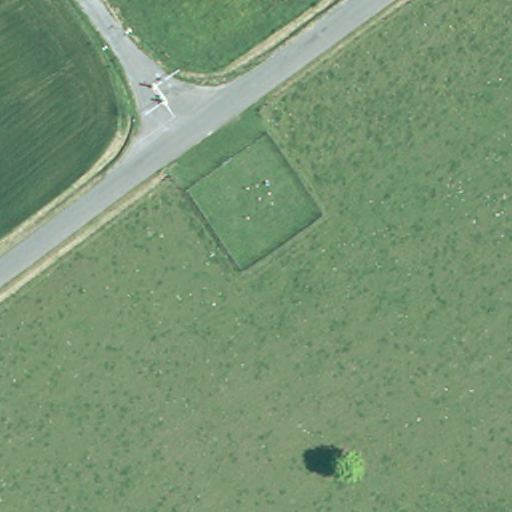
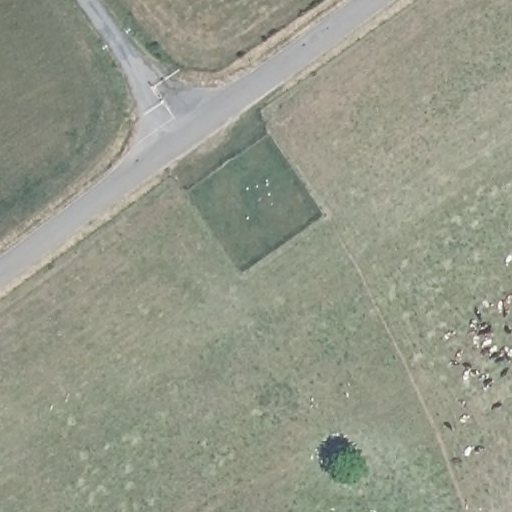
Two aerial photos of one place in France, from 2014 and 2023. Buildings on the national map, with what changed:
[]

